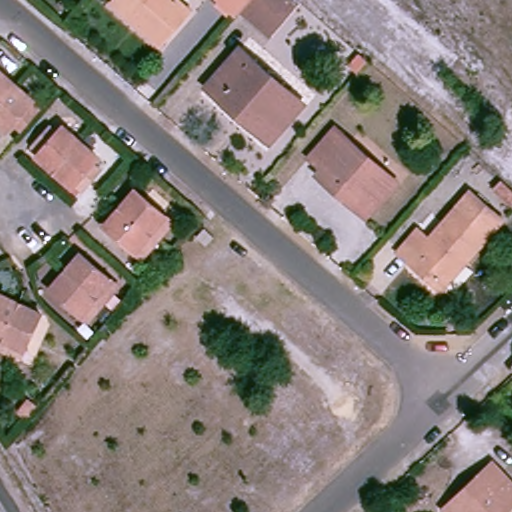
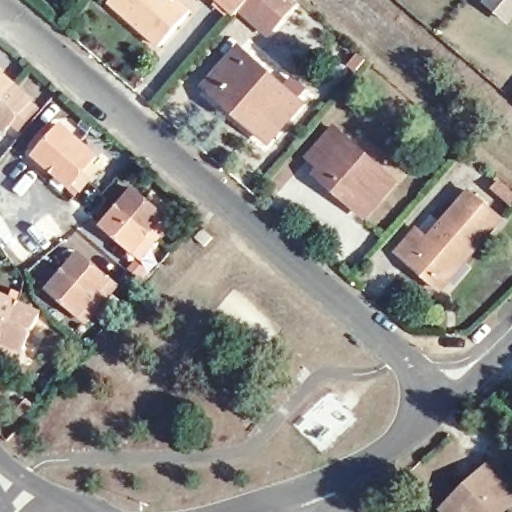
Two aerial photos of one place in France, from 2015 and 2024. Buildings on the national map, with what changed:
unchanged [(196,2),(166,37),(123,0),(194,0),(196,2)]
unchanged [(225,0),(246,0),(240,6),(237,11),(225,0)]
unchanged [(264,26),(240,6),(246,0),(287,0),(264,26)]
new [(512,19),(510,22),(487,3),(490,0),(512,0),(512,19)]
unchanged [(307,100),(275,137),(256,121),(260,117),(247,105),(243,110),(212,82),(245,45),(307,100)]
unchanged [(38,97),(35,100),(42,105),(36,112),(30,106),(11,127),(0,117),(0,68),(2,66),(38,97)]
unchanged [(400,179),(383,197),(373,188),(360,202),(324,170),(328,164),(315,152),(340,126),(400,179)]
unchanged [(104,158),(86,179),(92,184),(86,191),(80,185),(77,189),(41,157),(45,154),(37,148),(44,141),(50,147),(68,127),(104,158)]
unchanged [(171,212),(161,224),(168,229),(156,243),(150,237),(141,248),(110,222),(140,186),(171,212)]
unchanged [(511,220),(480,257),(475,254),(450,282),(423,259),(420,263),(407,254),(427,230),(438,240),(479,192),(511,220)]
unchanged [(214,239),(206,247),(195,239),(204,230),(214,239)]
unchanged [(121,271),(111,282),(118,288),(106,302),(100,296),(90,307),(60,280),(90,245),(121,271)]
unchanged [(46,309),(29,346),(15,339),(11,347),(0,342),(0,296),(4,289),(46,309)]
unchanged [(491,512),(443,512),(461,494),(463,497),(486,475),(497,486),(500,483),(510,494),(491,512)]

